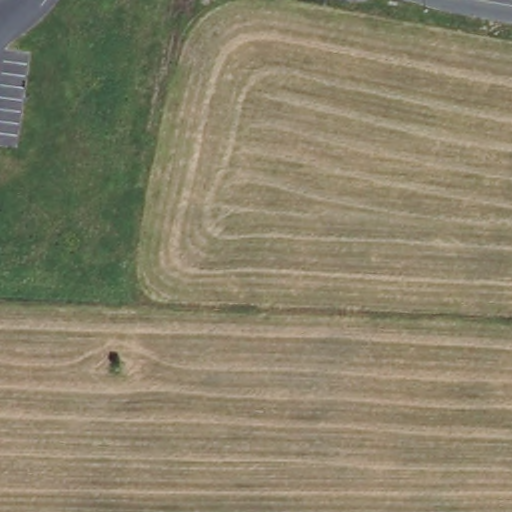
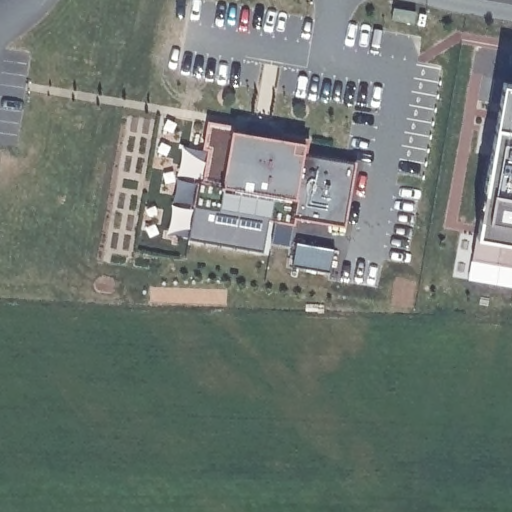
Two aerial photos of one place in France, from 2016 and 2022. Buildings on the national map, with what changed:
new [(501,108),(512,109),(512,267),(475,260),(501,108)]
new [(267,220),(267,218),(220,209),(219,212),(192,208),(197,181),(202,182),(207,149),(202,149),(207,122),(234,126),(233,131),(281,140),(282,135),(307,140),(306,155),(356,163),(345,227),(295,219),(293,224),(288,247),(271,244),(274,222),(267,220)]

